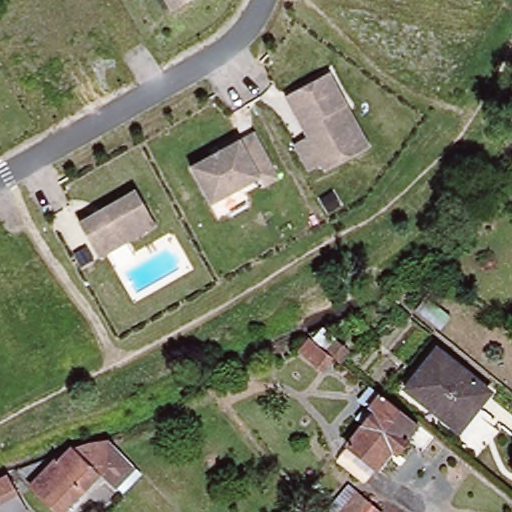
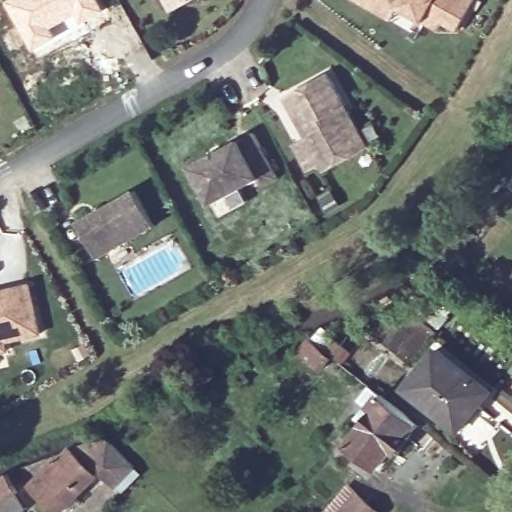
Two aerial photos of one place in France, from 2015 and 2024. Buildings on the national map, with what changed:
new [(5,0),(101,0),(105,9),(81,27),(78,24),(81,22),(77,16),(66,22),(67,24),(56,30),(60,37),(34,53),(4,1),(5,0)]
unchanged [(166,0),(193,0),(172,12),(166,0)]
new [(372,12),(351,0),(472,0),(453,33),(437,23),(433,31),(394,8),(387,20),(372,12)]
unchanged [(326,172),(322,165),(309,172),(295,145),(307,138),(286,98),(330,74),(347,106),(370,148),(326,172)]
unchanged [(255,134),(280,179),(265,187),(260,179),(211,206),(191,168),(255,134)]
unchanged [(135,191),(156,226),(100,258),(80,223),(135,191)]
new [(31,282),(41,335),(8,342),(9,352),(0,354),(0,290),(31,282)]
unchanged [(329,340),(340,349),(332,360),(321,351),(329,340)]
unchanged [(455,430),(401,387),(433,347),(486,389),(455,430)]
unchanged [(403,437),(405,438),(393,454),(388,451),(373,468),(345,445),(370,413),(366,410),(378,395),(414,424),(403,437)]
unchanged [(133,467),(110,490),(95,475),(60,512),(57,512),(29,486),(54,460),(55,462),(65,452),(107,441),(133,467)]
unchanged [(20,498),(0,510),(0,487),(10,481),(20,498)]
unchanged [(370,512),(328,512),(345,491),(370,512)]

